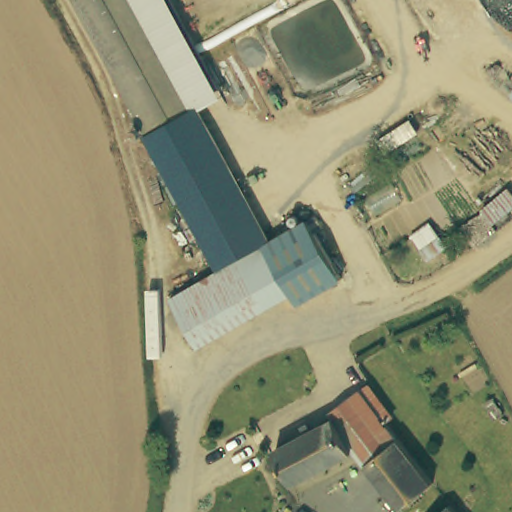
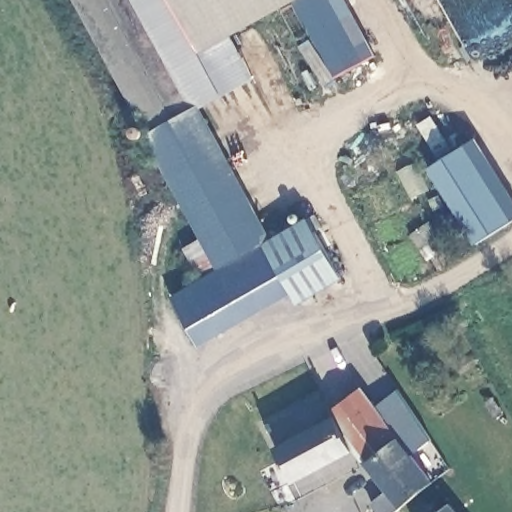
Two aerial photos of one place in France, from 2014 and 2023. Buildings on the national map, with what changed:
unchanged [(177,296),(224,269),(150,134),(153,132),(81,0),(140,0),(192,96),(203,90),(210,103),(199,108),(272,243),(314,219),(348,277),(304,302),(297,290),(203,344),(177,296)]
unchanged [(224,95),(210,103),(203,90),(192,96),(140,0),(171,0),(224,95)]
new [(171,0),(295,0),(200,52),(171,0)]
new [(337,76),(294,0),(295,0),(345,0),(376,55),(337,76)]
new [(477,140),(512,199),(512,221),(474,243),(426,169),(477,140)]
unchanged [(302,480),(283,446),(340,417),(336,409),(366,390),(376,384),(387,398),(377,403),(398,429),(441,480),(410,505),(362,449),(302,480)]
unchanged [(461,512),(433,512),(450,499),(461,512)]

